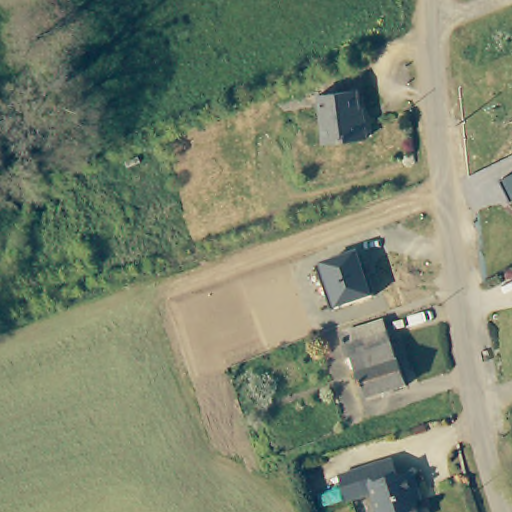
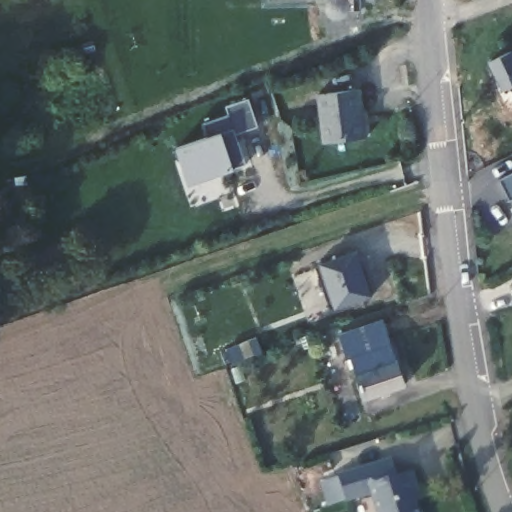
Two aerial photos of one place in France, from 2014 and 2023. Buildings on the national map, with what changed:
new [(512,87),(502,92),(489,63),(512,52),(512,87)]
unchanged [(363,91),(360,92),(367,120),(370,119),(375,137),(332,147),(321,102),(339,98),(333,76),(358,70),(363,91)]
new [(210,136),(204,124),(229,115),(225,106),(250,99),(259,127),(237,134),(245,164),(234,171),(190,187),(176,148),(210,136)]
unchanged [(501,180),(512,175),(512,198),(510,199),(501,180)]
unchanged [(338,305),(318,260),(357,247),(373,294),(338,305)]
unchanged [(353,361),(350,362),(337,329),(380,313),(403,378),(365,392),(353,361)]
new [(254,339),(259,354),(229,366),(223,352),(254,339)]
unchanged [(408,494),(413,512),(375,512),(370,494),(361,497),(355,474),(388,464),(392,478),(407,474),(413,493),(408,494)]

